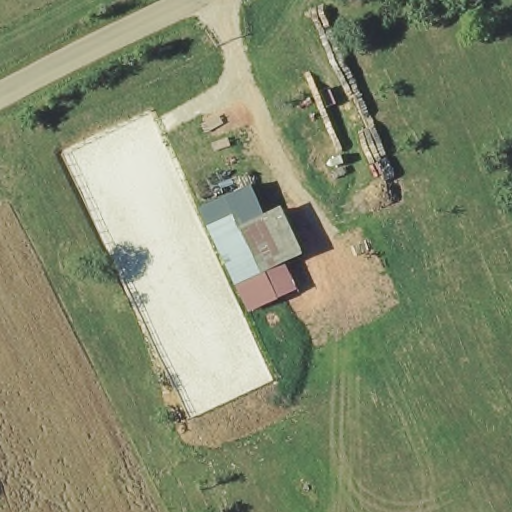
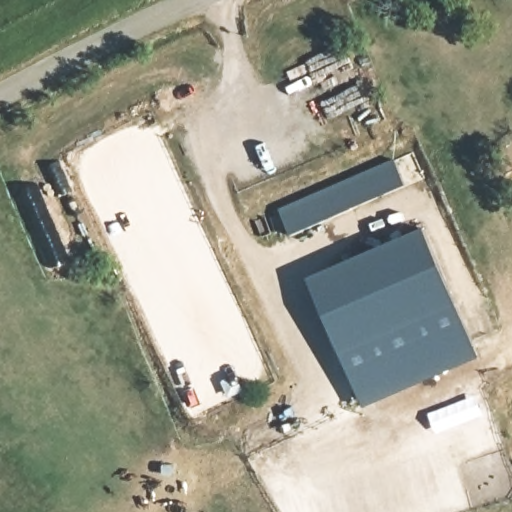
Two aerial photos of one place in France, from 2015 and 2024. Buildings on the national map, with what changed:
new [(402,187),(287,235),(276,207),(391,159),(402,187)]
demolished [(268,217),(291,208),(310,253),(288,263),(299,291),(251,310),(204,213),(254,191),(268,217)]
new [(420,229),(475,357),(359,407),(303,279),(420,229)]

